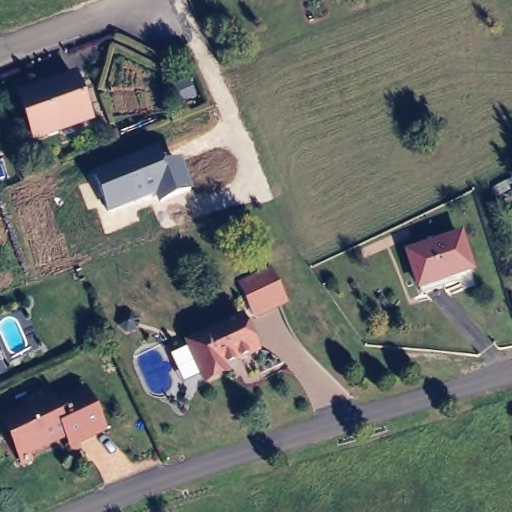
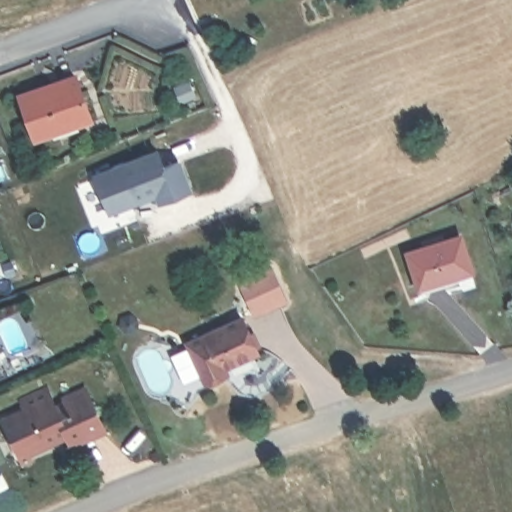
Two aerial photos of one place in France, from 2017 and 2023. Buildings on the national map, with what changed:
unchanged [(88,114),(33,133),(20,93),(74,73),(88,114)]
unchanged [(159,206),(155,197),(107,214),(92,177),(158,151),(165,164),(182,159),(194,190),(159,206)]
unchanged [(465,277),(415,290),(405,255),(457,243),(465,277)]
unchanged [(238,278),(270,264),(287,304),(253,316),(238,278)]
unchanged [(257,351),(225,364),(227,368),(203,378),(187,339),(242,318),(257,351)]
unchanged [(12,440),(3,418),(21,409),(18,402),(45,389),(53,407),(67,400),(65,395),(85,386),(102,428),(77,439),(80,449),(72,453),(65,436),(33,450),(20,456),(12,440)]

